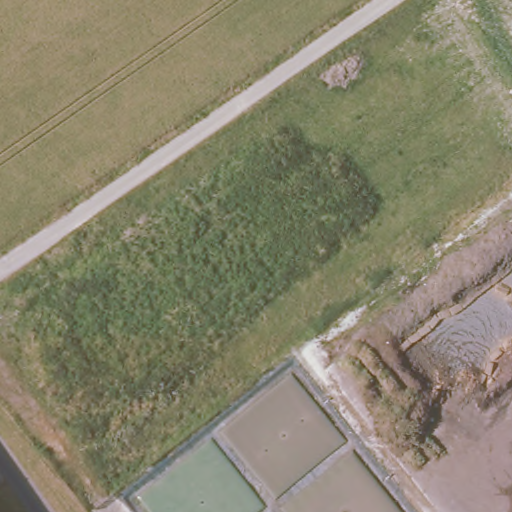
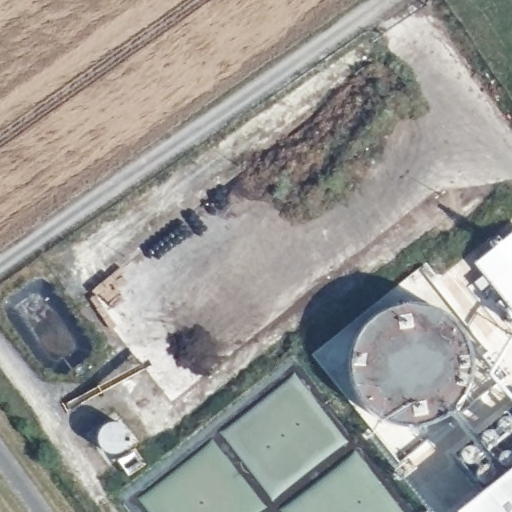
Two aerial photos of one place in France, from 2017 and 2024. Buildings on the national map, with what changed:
new [(512,235),(512,307),(485,273),(486,255),(512,235)]
new [(512,467),(512,512),(457,512),(456,511),(512,467)]

